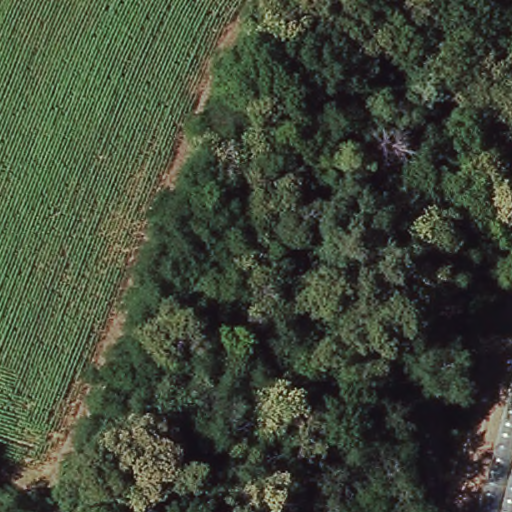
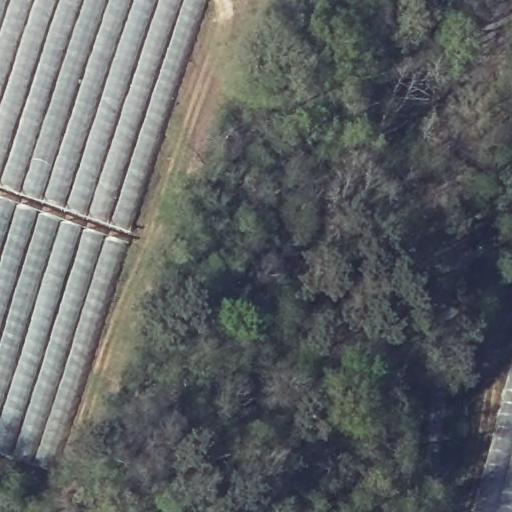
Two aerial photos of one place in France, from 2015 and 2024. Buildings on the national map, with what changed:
new [(164,125),(129,237),(124,257),(100,323),(82,382),(71,424),(53,475),(0,456),(0,0),(209,0),(164,125)]
demolished [(477,512),(512,382),(512,512),(477,512)]

